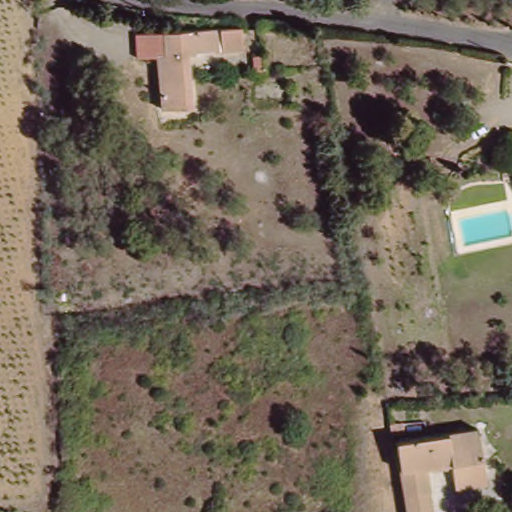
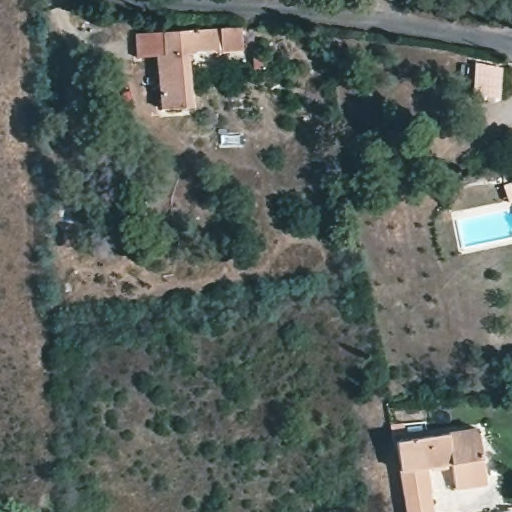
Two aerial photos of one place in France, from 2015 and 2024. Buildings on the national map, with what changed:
unchanged [(193,106),(163,109),(155,57),(137,56),(137,34),(165,34),(240,26),(241,50),(187,53),(193,106)]
unchanged [(456,486),(453,462),(426,465),(430,499),(427,499),(429,512),(412,512),(402,445),(483,436),(488,482),(456,486)]

